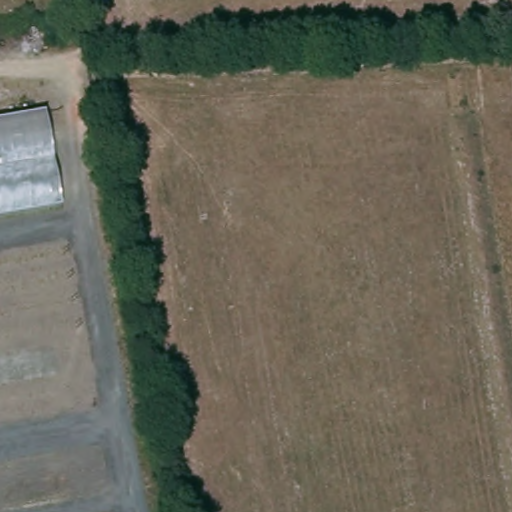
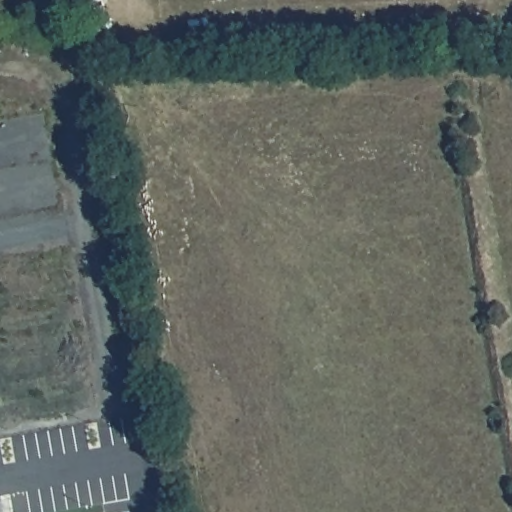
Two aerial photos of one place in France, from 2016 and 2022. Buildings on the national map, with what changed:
demolished [(62,210),(0,220),(0,120),(46,112),(62,210)]

